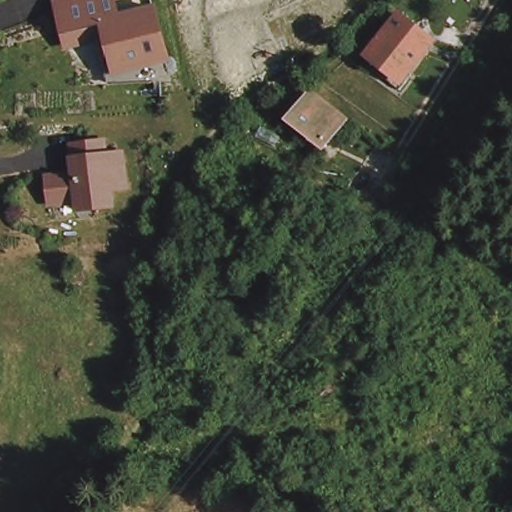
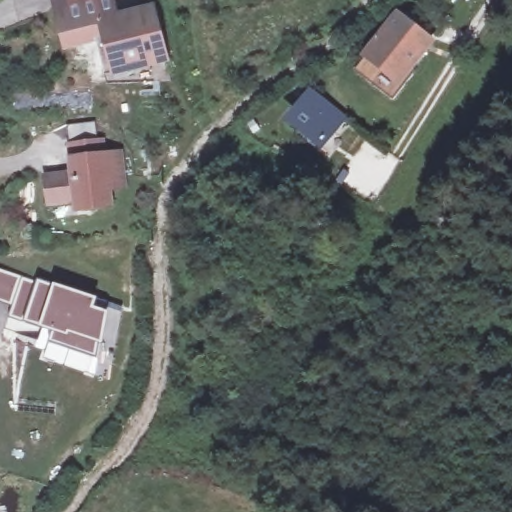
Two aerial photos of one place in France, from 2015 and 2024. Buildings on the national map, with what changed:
unchanged [(154,2),(172,65),(116,79),(105,41),(67,50),(52,0),(116,0),(119,10),(154,2)]
unchanged [(377,54),(405,20),(435,41),(407,76),(377,54)]
unchanged [(352,118),(321,158),(280,124),(310,85),(352,118)]
unchanged [(45,200),(42,174),(67,171),(67,165),(66,156),(64,140),(97,136),(98,152),(115,149),(119,184),(102,187),(106,204),(88,205),(72,207),(70,197),(45,200)]
new [(40,283),(57,287),(97,298),(92,308),(108,313),(102,343),(97,356),(49,341),(53,329),(41,324),(25,321),(9,317),(12,305),(0,301),(0,271),(40,283)]

